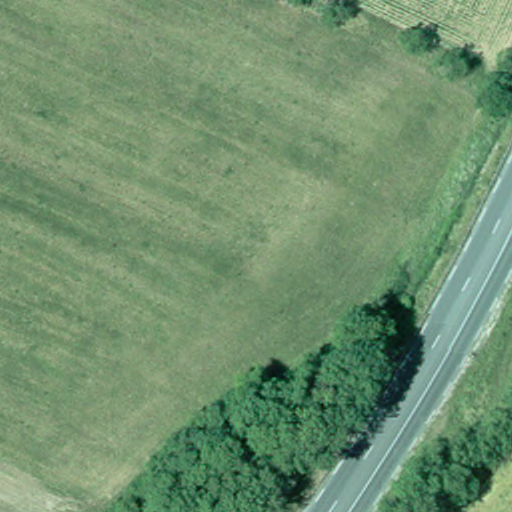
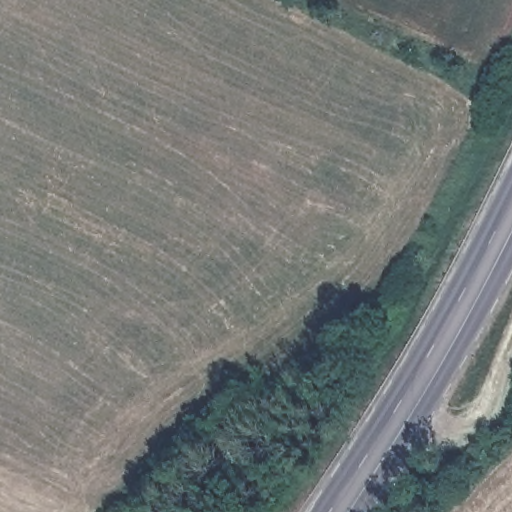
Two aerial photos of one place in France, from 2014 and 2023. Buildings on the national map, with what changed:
[]

